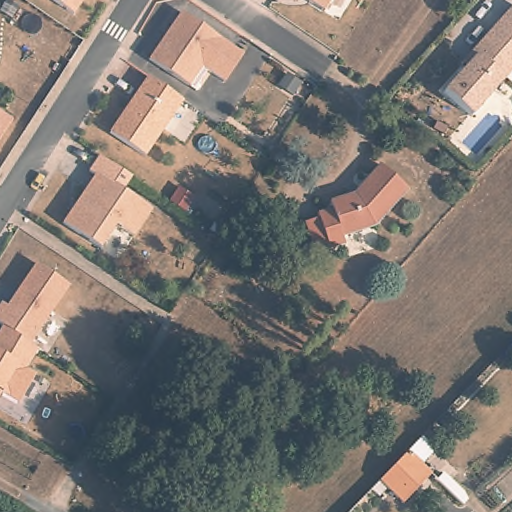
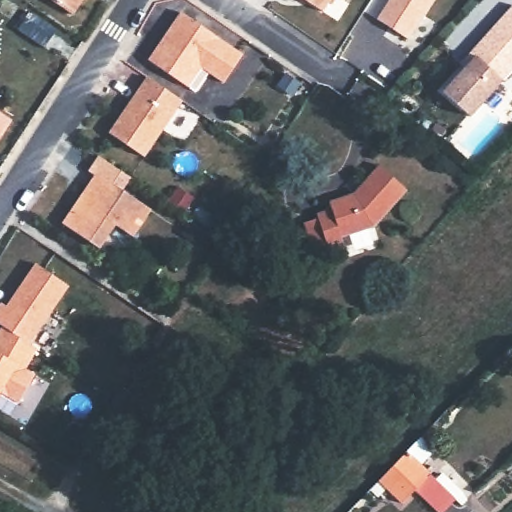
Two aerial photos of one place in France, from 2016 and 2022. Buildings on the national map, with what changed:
unchanged [(78,15),(56,0),(88,0),(78,15)]
unchanged [(329,12),(309,0),(337,0),(329,12)]
new [(390,0),(434,0),(409,40),(378,20),(390,0)]
unchanged [(469,118),(442,94),(474,57),(469,54),(512,6),(512,70),(469,118)]
unchanged [(243,55),(224,83),(202,69),(189,88),(149,61),(180,13),(243,55)]
unchanged [(182,102),(144,157),(109,134),(146,77),(182,102)]
unchanged [(0,137),(0,114),(10,121),(0,137)]
unchanged [(303,225),(319,221),(318,216),(333,212),(331,202),(354,197),(379,167),(406,192),(374,229),(345,237),(347,248),(328,253),(327,249),(310,254),(303,225)]
unchanged [(131,236),(114,224),(98,248),(61,222),(95,172),(149,209),(131,236)]
unchanged [(10,306),(39,263),(73,286),(33,344),(6,326),(0,322),(0,310),(5,302),(10,306)]
unchanged [(41,350),(30,369),(39,375),(23,403),(5,393),(0,402),(0,336),(6,326),(33,344),(41,350)]
unchanged [(407,453),(430,476),(401,505),(379,483),(407,453)]

